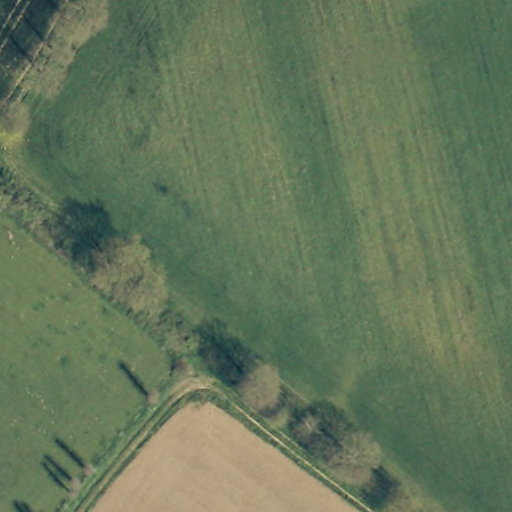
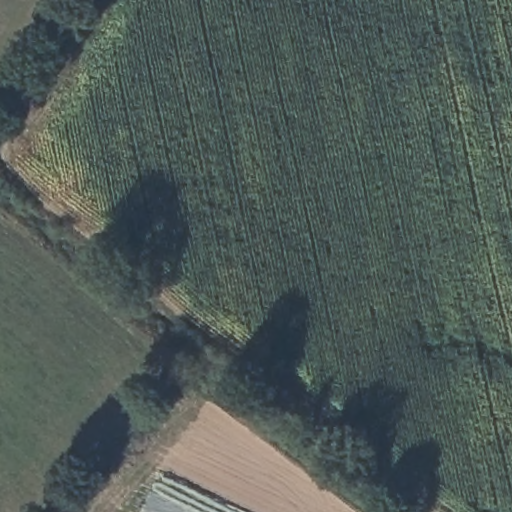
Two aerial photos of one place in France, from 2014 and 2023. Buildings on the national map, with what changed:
[]

